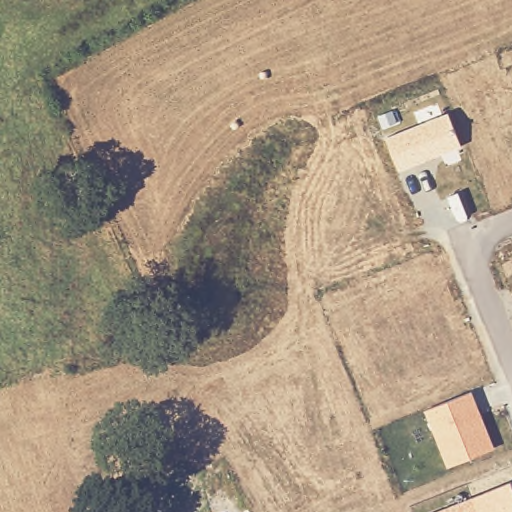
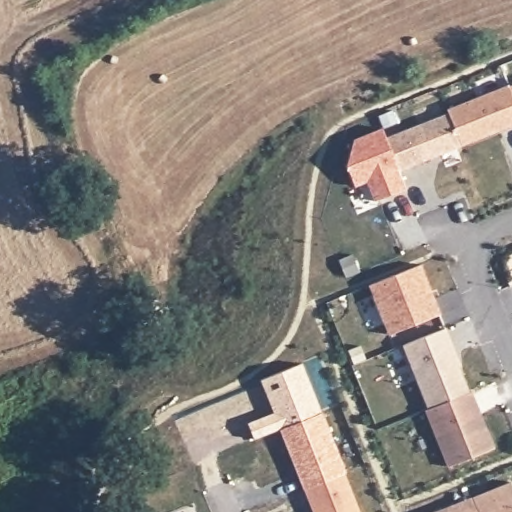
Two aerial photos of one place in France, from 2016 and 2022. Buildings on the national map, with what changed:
new [(447,109),(508,84),(512,94),(512,125),(461,145),(447,109)]
new [(512,84),(512,94),(509,85),(512,84)]
new [(461,145),(399,169),(386,137),(448,112),(461,145)]
new [(383,127),(386,137),(399,169),(406,189),(374,201),(368,181),(354,186),(346,165),(354,138),(383,127)]
new [(420,263),(440,313),(389,333),(369,284),(420,263)]
new [(447,326),(464,365),(461,367),(470,392),(427,409),(402,345),(447,326)]
unchanged [(448,466),(425,410),(472,391),(494,447),(448,466)]
new [(324,411),(347,471),(343,473),(342,470),(302,486),(280,429),(324,411)]
new [(359,512),(312,512),(302,486),(342,470),(359,512)]
unchanged [(511,482),(512,484),(512,512),(436,512),(511,482)]

